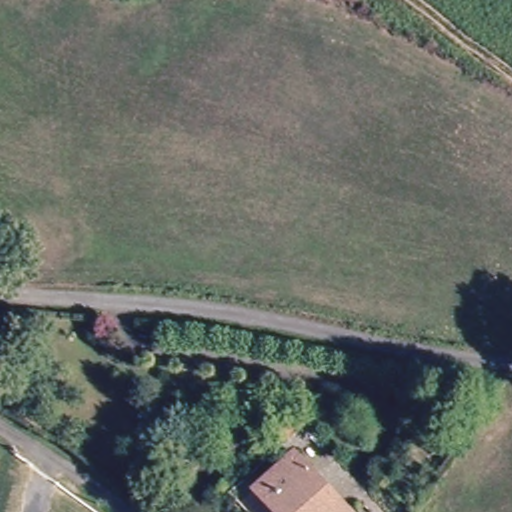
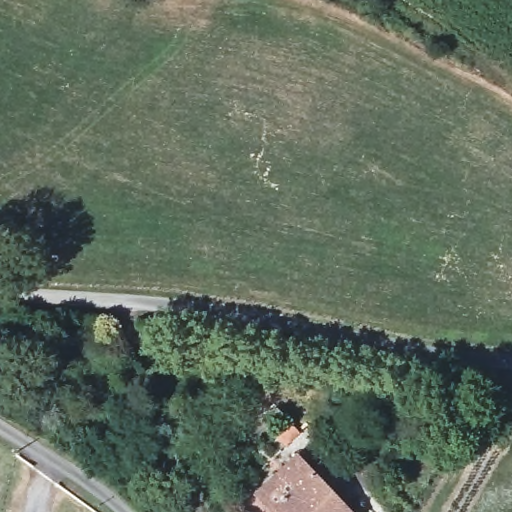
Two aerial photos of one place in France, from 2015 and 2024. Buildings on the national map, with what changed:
unchanged [(348,512),(275,512),(256,492),(294,455),(348,512)]

